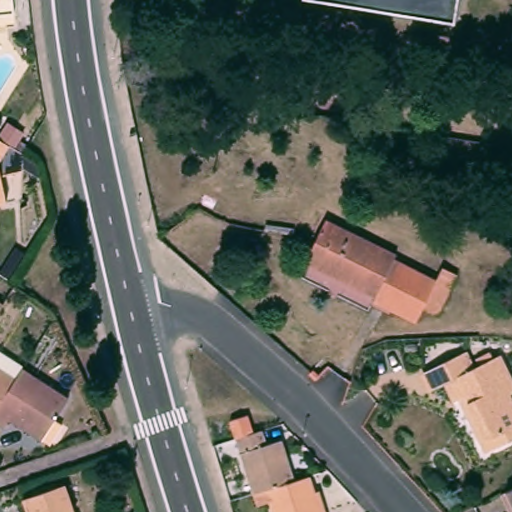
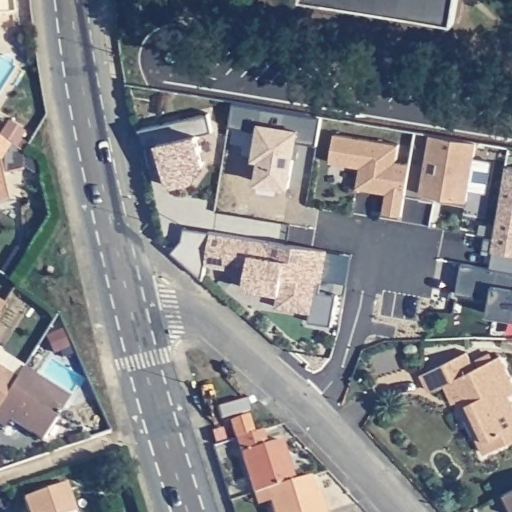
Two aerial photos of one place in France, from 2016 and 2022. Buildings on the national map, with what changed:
unchanged [(3,17),(0,17),(0,0),(6,0),(3,17)]
unchanged [(455,22),(319,0),(459,0),(455,22)]
new [(209,113),(213,131),(198,135),(204,163),(200,170),(203,170),(199,175),(197,174),(193,180),(169,185),(165,164),(155,166),(150,144),(144,145),(140,127),(209,113)]
new [(357,187),(361,166),(330,161),(334,133),(399,144),(396,161),(410,164),(402,215),(384,212),(387,192),(379,191),(357,187)]
new [(431,134),(477,141),(474,159),(491,161),(486,192),(469,189),(467,200),(421,193),(431,134)]
unchanged [(0,156),(0,141),(7,145),(0,156)]
new [(486,236),(494,237),(507,165),(512,166),(512,271),(491,267),(494,250),(484,248),(486,236)]
unchanged [(0,204),(0,188),(3,203),(0,204)]
demolished [(390,259),(389,264),(431,285),(436,273),(451,280),(431,321),(416,313),(409,327),(367,306),(369,302),(298,266),(319,225),(390,259)]
new [(319,280),(318,290),(337,293),(332,323),(310,320),(312,310),(277,305),(279,292),(244,286),(248,263),(207,260),(204,277),(173,250),(184,237),(185,226),(328,249),(324,280),(319,280)]
new [(463,262),(491,267),(512,271),(512,317),(489,313),(491,298),(457,293),(463,262)]
unchanged [(449,402),(440,383),(427,390),(419,373),(466,351),(474,367),(500,356),(512,381),(512,393),(508,395),(512,403),(512,439),(483,453),(478,444),(457,399),(449,402)]
unchanged [(0,405),(0,358),(21,372),(14,383),(0,405)]
unchanged [(41,443),(10,425),(6,432),(0,429),(0,405),(14,383),(21,372),(22,370),(69,401),(41,443)]
unchanged [(229,420),(246,415),(252,432),(254,431),(262,429),(266,443),(280,438),(293,480),(264,489),(250,493),(234,438),(229,420)]
unchanged [(313,492),(318,490),(324,509),(325,512),(272,512),(264,489),(293,480),(308,475),(313,492)]
unchanged [(69,511),(72,510),(73,512),(24,512),(19,498),(60,483),(69,511)]
unchanged [(512,486),(512,512),(509,512),(500,492),(512,486)]

